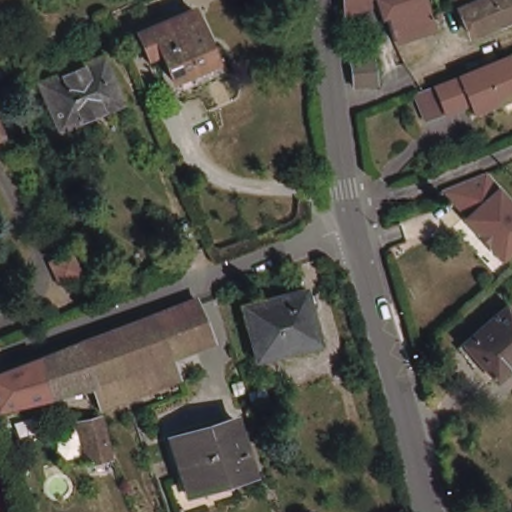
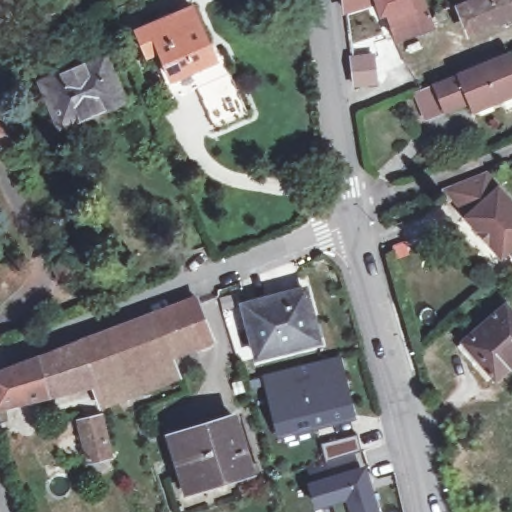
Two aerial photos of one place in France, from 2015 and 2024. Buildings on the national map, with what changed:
unchanged [(346,11),(345,0),(425,0),(430,15),(435,27),(397,40),(389,20),(392,19),(387,0),(346,11)]
unchanged [(468,39),(458,12),(487,0),(512,0),(512,22),(468,39)]
unchanged [(224,69),(175,90),(167,73),(155,45),(145,50),(134,27),(188,4),(210,54),(217,52),(224,69)]
unchanged [(60,128),(40,82),(105,55),(125,101),(60,128)]
unchanged [(373,55),(377,82),(355,85),(351,58),(373,55)]
unchanged [(470,101),(427,118),(418,92),(508,56),(512,65),(512,95),(473,110),(470,101)]
unchanged [(485,177),(512,209),(512,253),(502,261),(470,220),(467,222),(445,192),(485,177)]
unchanged [(260,356),(245,305),(306,290),(320,340),(260,356)]
unchanged [(157,315),(201,299),(217,341),(175,356),(157,315)]
unchanged [(502,384),(478,358),(473,362),(463,352),(510,309),(512,311),(512,375),(502,384)]
unchanged [(125,405),(122,400),(107,406),(100,384),(52,395),(42,360),(157,315),(175,356),(182,376),(130,397),(132,402),(125,405)]
new [(340,354),(357,418),(277,436),(260,374),(340,354)]
unchanged [(0,401),(0,375),(42,360),(52,395),(2,407),(0,401)]
unchanged [(102,416),(110,457),(89,460),(79,421),(102,416)]
unchanged [(184,476),(172,438),(235,419),(251,472),(208,484),(189,491),(184,476)]
new [(357,434),(361,450),(327,460),(322,443),(357,434)]
new [(363,469),(367,481),(377,512),(334,512),(331,502),(317,506),(310,485),(314,484),(309,467),(352,455),(357,471),(363,469)]

